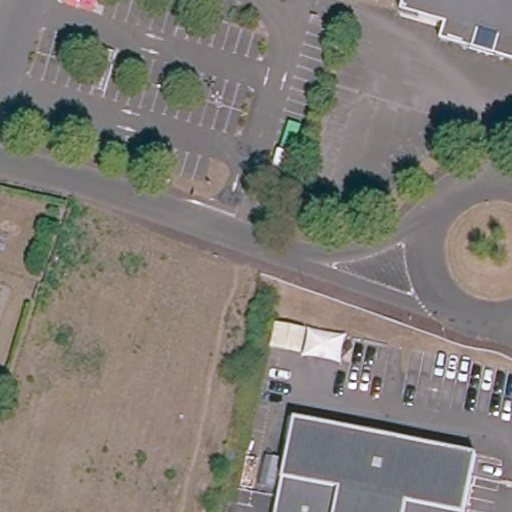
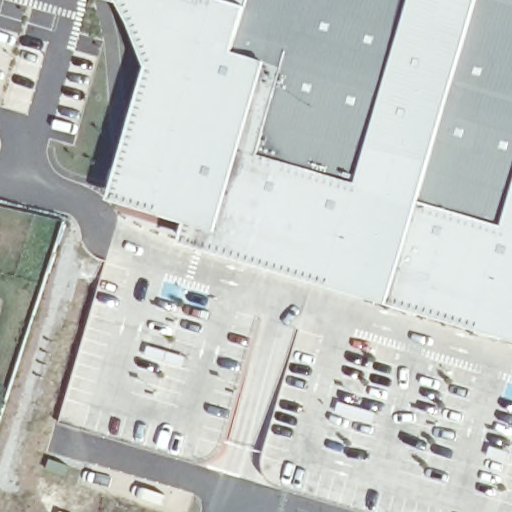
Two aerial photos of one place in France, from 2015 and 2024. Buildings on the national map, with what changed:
new [(118,0),(120,4),(106,0),(118,0)]
new [(182,245),(189,225),(110,202),(149,68),(118,0),(512,0),(512,341),(182,245)]
demolished [(406,0),(512,0),(512,48),(443,29),(401,16),(406,0)]
demolished [(301,214),(330,223),(328,230),(309,227),(298,222),(301,214)]
new [(221,451),(215,457),(207,462),(197,463),(56,422),(101,272),(260,318),(221,451)]
new [(282,490),(271,482),(264,470),(263,459),(300,330),(512,388),(512,512),(360,512),(282,490)]
demolished [(290,421),(431,447),(424,478),(417,512),(273,512),(290,421)]
demolished [(424,478),(431,447),(477,455),(465,512),(417,512),(424,478)]
new [(46,457),(64,465),(60,475),(42,468),(46,457)]
new [(58,511),(60,512),(57,512),(58,511)]

